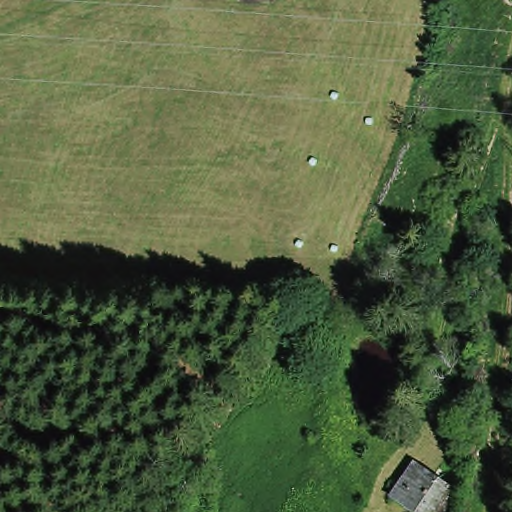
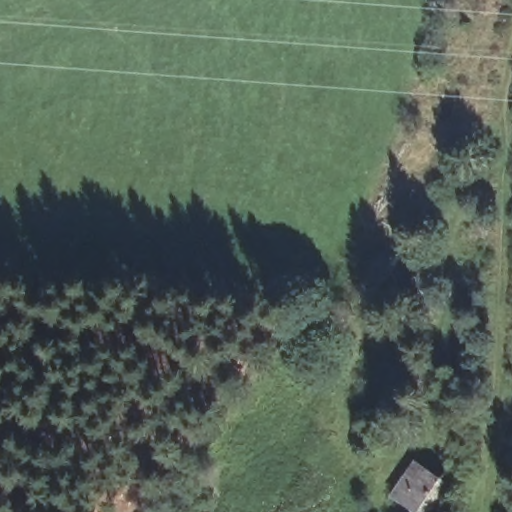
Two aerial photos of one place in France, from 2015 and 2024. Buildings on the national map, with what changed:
unchanged [(442,485),(427,508),(388,480),(401,458),(442,485)]

